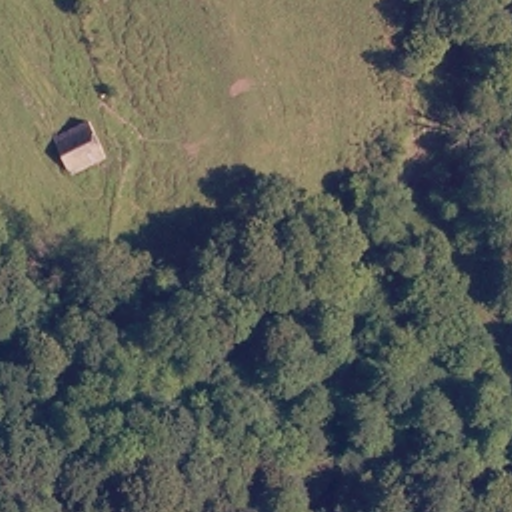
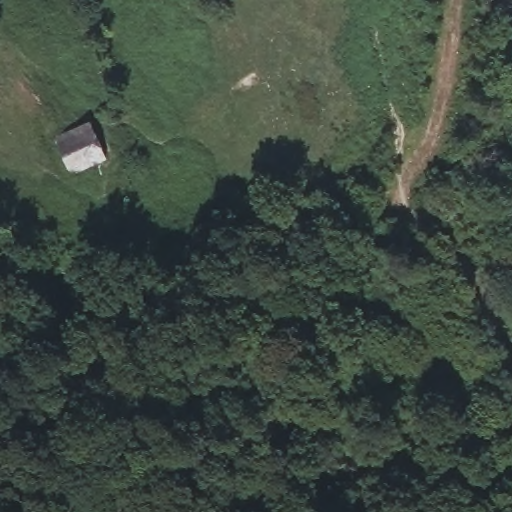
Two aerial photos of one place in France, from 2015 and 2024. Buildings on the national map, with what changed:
unchanged [(69,177),(59,136),(94,126),(105,166),(69,177)]

